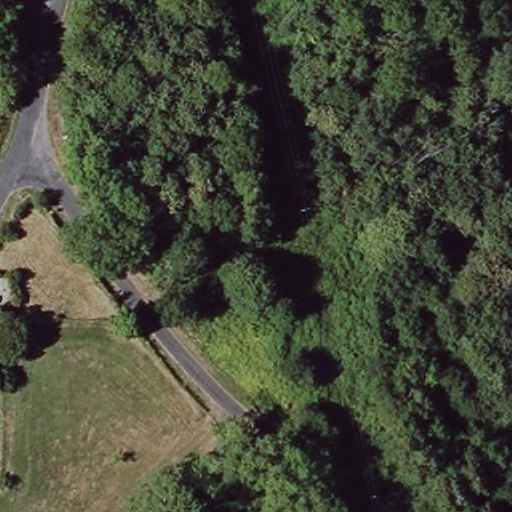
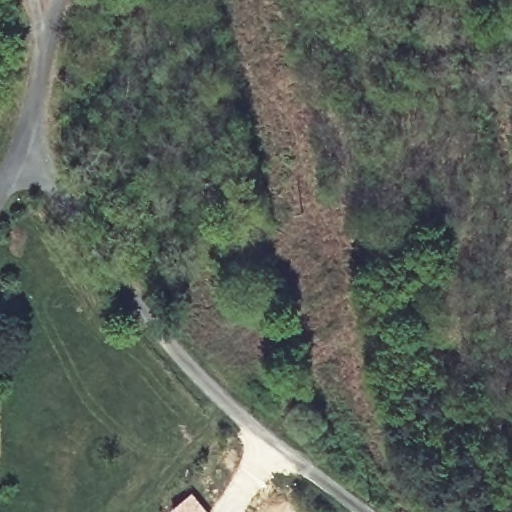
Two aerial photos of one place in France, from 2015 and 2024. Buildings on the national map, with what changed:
new [(193,491),(210,512),(166,512),(193,491)]

